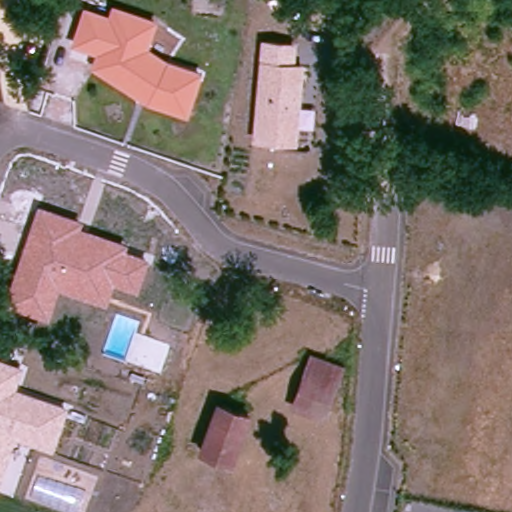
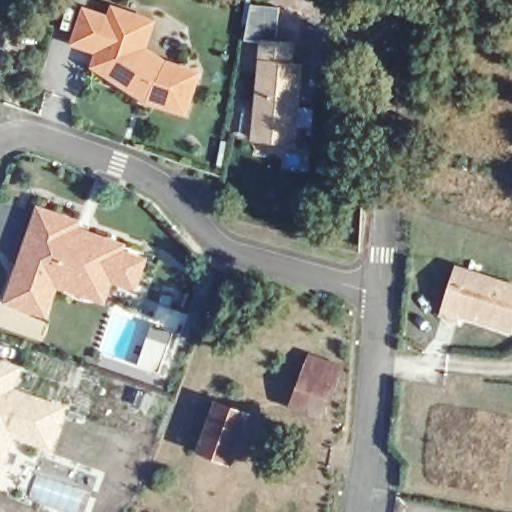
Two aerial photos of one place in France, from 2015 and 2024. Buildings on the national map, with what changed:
unchanged [(159,19),(150,48),(167,60),(201,70),(189,117),(147,104),(90,68),(95,53),(70,45),(83,7),(108,14),(112,3),(159,19)]
unchanged [(280,142),(255,141),(262,43),(291,46),(290,65),(300,66),(295,127),(293,143),(280,142)]
unchanged [(38,203),(83,219),(80,227),(127,243),(126,250),(149,258),(137,291),(114,284),(108,304),(56,288),(45,320),(5,304),(38,203)]
new [(512,333),(460,317),(458,323),(440,317),(456,264),(512,282),(512,333)]
new [(149,336),(170,343),(165,360),(160,372),(140,364),(144,353),(149,336)]
unchanged [(23,366),(15,389),(69,405),(52,452),(11,440),(0,476),(0,358),(23,366)]
unchanged [(322,418),(292,406),(310,358),(341,369),(322,418)]
unchanged [(248,415),(231,463),(200,451),(216,404),(248,415)]

